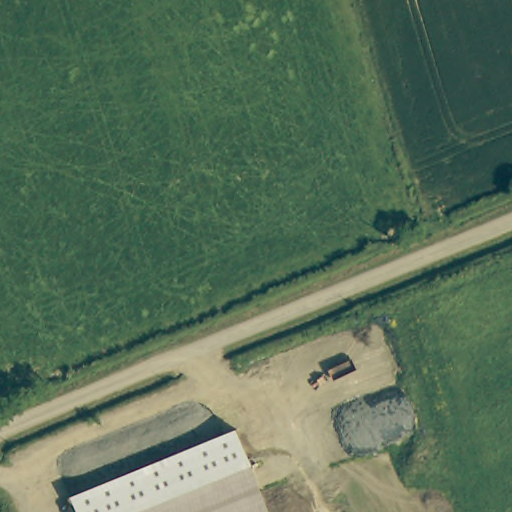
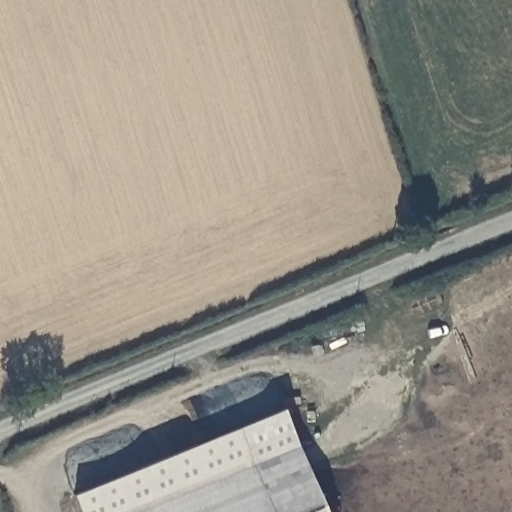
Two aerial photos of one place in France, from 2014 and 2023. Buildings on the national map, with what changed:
new [(283,409),(327,512),(272,512),(236,428),(283,409)]
unchanged [(236,428),(272,512),(80,512),(72,495),(236,428)]

